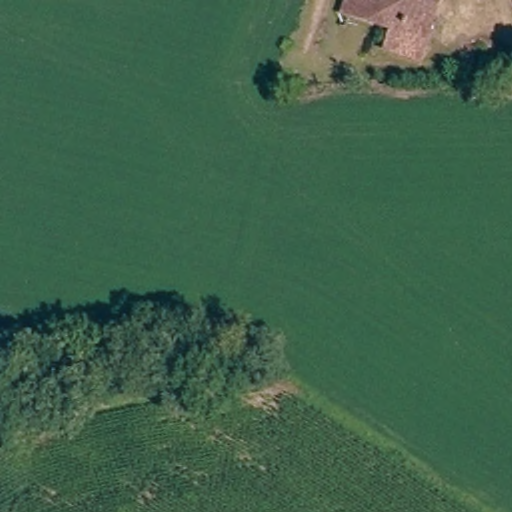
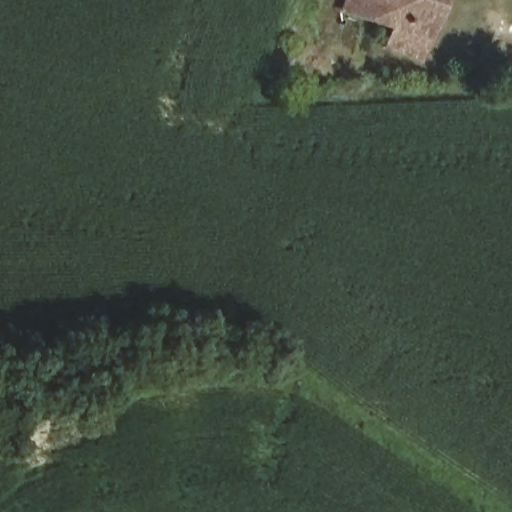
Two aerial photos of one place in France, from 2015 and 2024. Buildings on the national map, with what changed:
unchanged [(386,27),(336,14),(340,0),(443,0),(421,61),(378,49),(386,27)]

